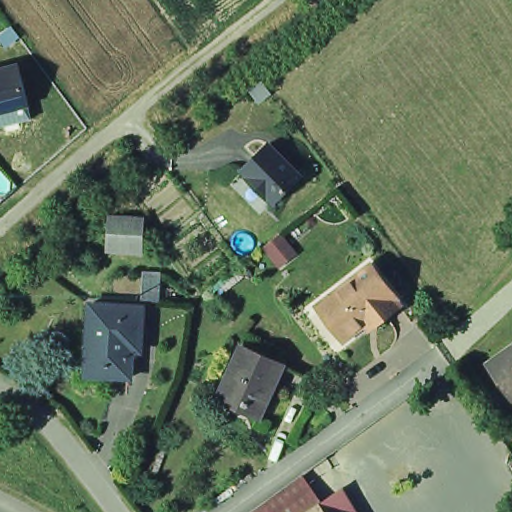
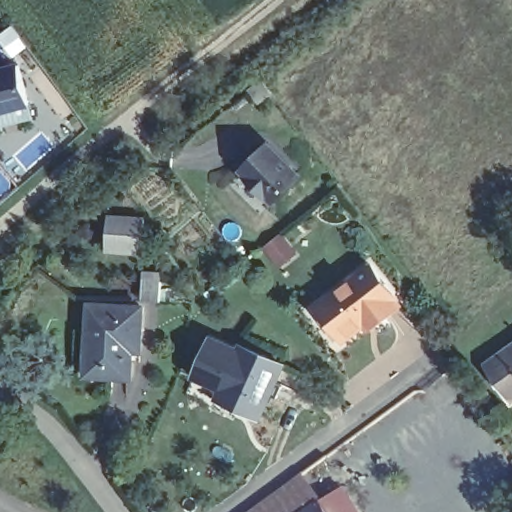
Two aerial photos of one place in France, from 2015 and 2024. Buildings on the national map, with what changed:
unchanged [(32,106),(0,115),(0,72),(22,66),(32,106)]
unchanged [(240,172),(270,140),(305,175),(275,204),(240,172)]
unchanged [(150,213),(149,239),(113,237),(115,211),(150,213)]
unchanged [(370,312),(353,325),(350,328),(323,295),(327,292),(377,253),(404,287),(402,288),(406,294),(380,313),(375,318),(370,312)]
unchanged [(147,295),(149,267),(167,267),(165,296),(147,295)]
unchanged [(95,299),(140,301),(148,302),(147,325),(146,346),(137,346),(137,373),(114,372),(92,371),(92,361),(95,299)]
new [(225,389),(224,393),(191,380),(211,333),(244,348),(225,389)]
unchanged [(247,399),(225,389),(247,340),(290,359),(265,412),(246,403),(247,399)]
unchanged [(486,360),(512,342),(512,394),(511,395),(486,360)]
unchanged [(308,481),(265,512),(247,512),(302,471),(308,481)]
unchanged [(321,499),(330,493),(339,505),(342,503),(348,512),(265,512),(308,481),(321,499)]

